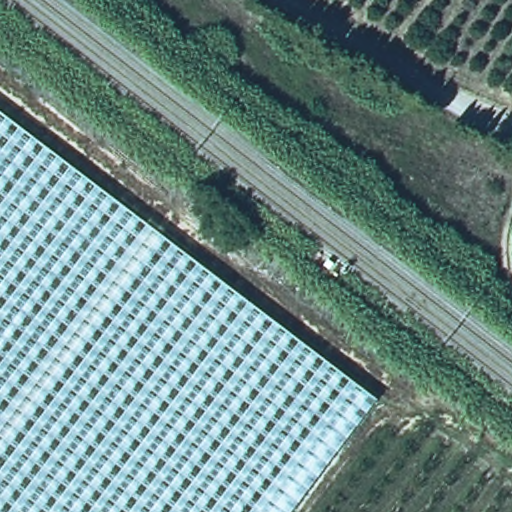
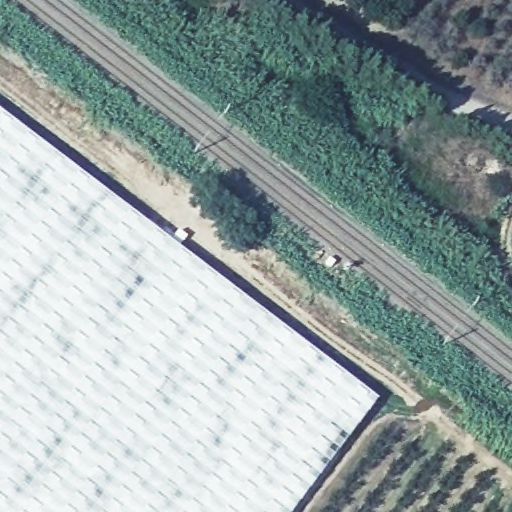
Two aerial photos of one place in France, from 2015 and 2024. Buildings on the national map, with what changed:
unchanged [(374,406),(293,512),(0,512),(0,121),(374,406)]

